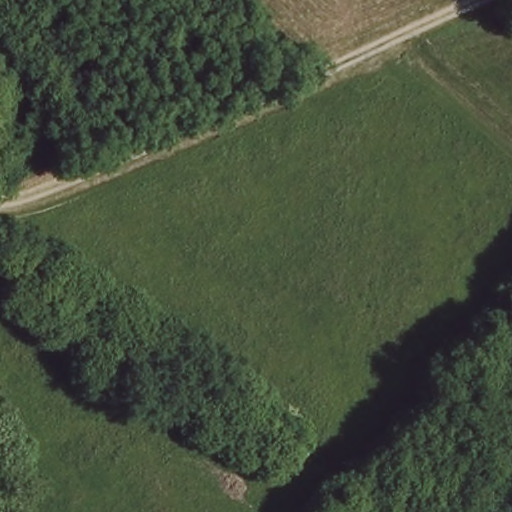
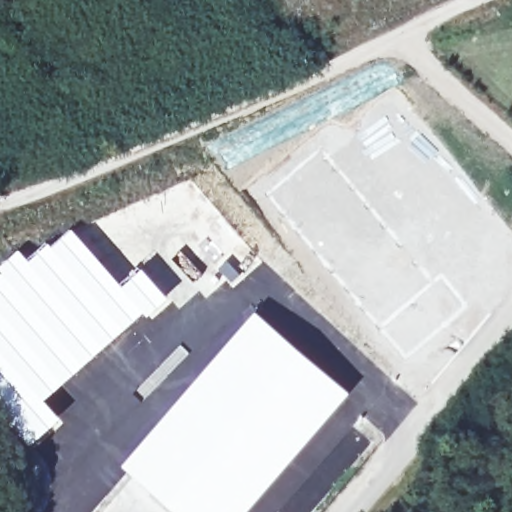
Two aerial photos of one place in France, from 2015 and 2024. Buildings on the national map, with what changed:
new [(0,272),(0,267),(20,249),(30,259),(48,242),(53,246),(72,229),(123,284),(143,269),(173,303),(152,322),(148,318),(110,352),(50,402),(65,421),(31,450),(0,414),(0,274),(1,273),(0,272)]
new [(172,409),(176,404),(211,362),(259,312),(355,395),(284,478),(258,504),(252,512),(177,512),(124,467),(172,409)]

